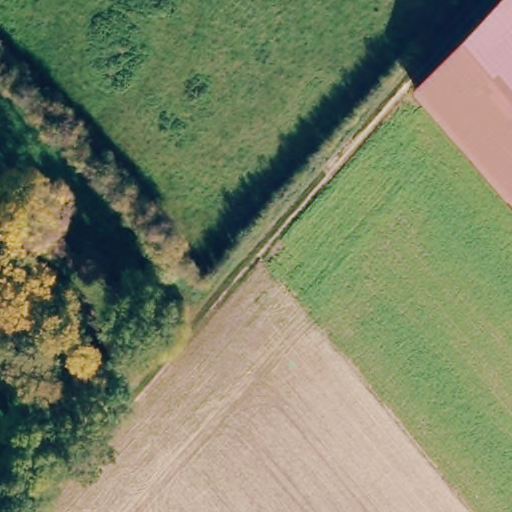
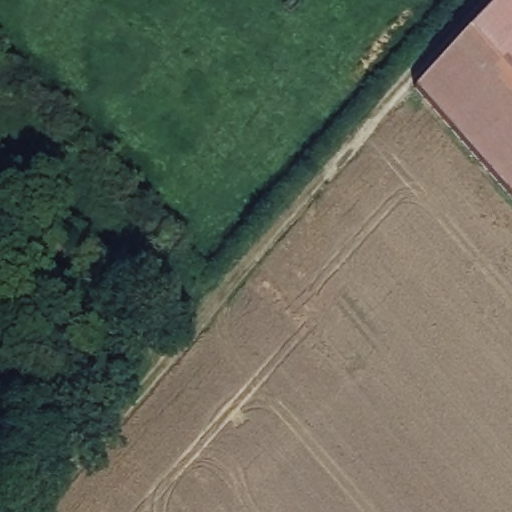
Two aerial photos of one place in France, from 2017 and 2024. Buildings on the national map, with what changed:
unchanged [(505,0),(512,0),(512,197),(414,88),(505,0)]

